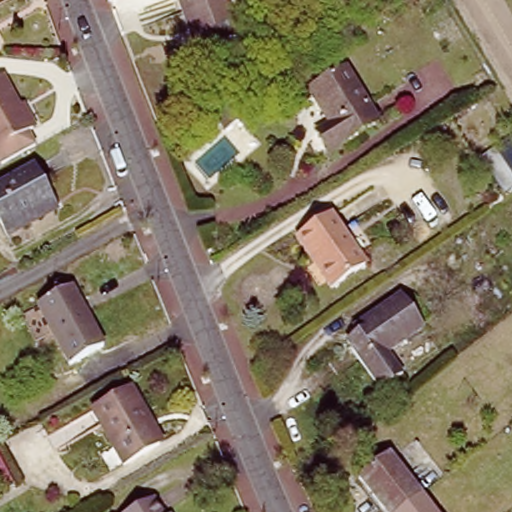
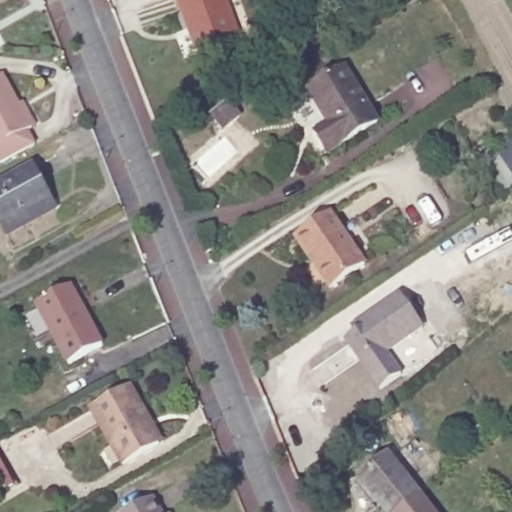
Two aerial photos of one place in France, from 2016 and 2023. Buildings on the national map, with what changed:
unchanged [(237,36),(197,50),(176,0),(222,0),(237,36)]
unchanged [(30,127),(25,132),(32,145),(0,162),(0,74),(2,74),(30,127)]
unchanged [(350,79),(380,134),(328,162),(317,142),(330,135),(312,100),(350,79)]
unchanged [(31,170),(54,214),(6,240),(0,230),(0,188),(31,170)]
unchanged [(363,268),(330,290),(295,239),(327,216),(363,268)]
unchanged [(70,287),(103,347),(87,355),(71,365),(37,303),(70,287)]
unchanged [(401,294),(425,330),(388,355),(401,376),(378,391),(345,341),(363,329),(359,322),(401,294)]
unchanged [(132,391),(160,445),(122,465),(94,411),(132,391)]
unchanged [(401,512),(389,512),(362,478),(388,455),(422,496),(401,512)]
unchanged [(401,512),(422,496),(434,512),(401,512)]
unchanged [(129,512),(148,500),(156,512),(129,512)]

